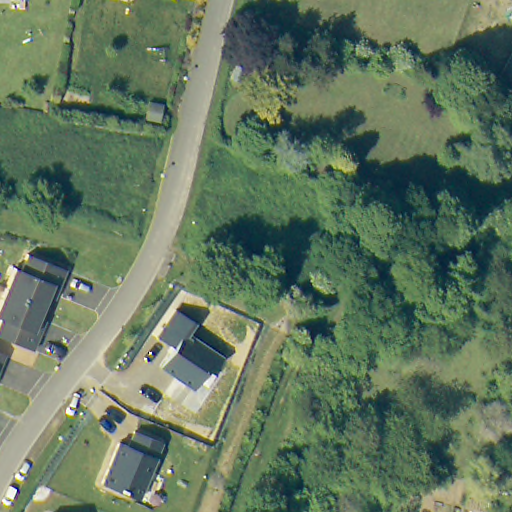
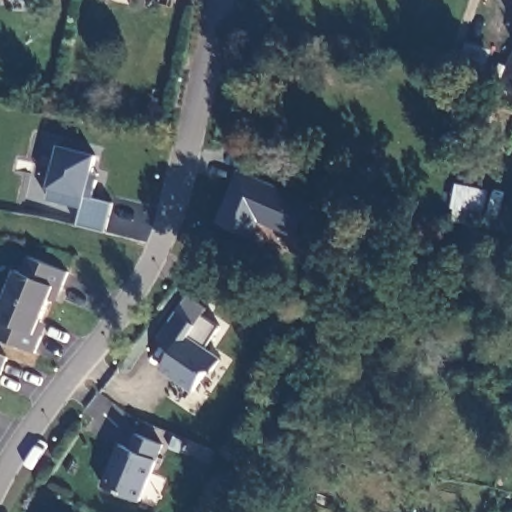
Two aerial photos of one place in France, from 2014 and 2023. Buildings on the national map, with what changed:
unchanged [(501,82),(503,77),(512,60),(512,88),(501,82)]
unchanged [(231,87),(237,72),(247,76),(242,91),(231,87)]
new [(93,172),(98,174),(92,198),(112,202),(104,231),(76,224),(80,208),(45,199),(48,189),(58,146),(97,155),(93,172)]
new [(235,176),(307,214),(289,248),(252,228),(243,244),(210,226),(235,176)]
unchanged [(67,296),(61,293),(41,339),(48,342),(40,359),(2,343),(9,327),(2,324),(23,276),(29,278),(36,262),(75,279),(67,296)]
unchanged [(177,310),(197,324),(189,335),(225,359),(216,372),(211,369),(195,392),(161,368),(174,349),(157,337),(177,310)]
unchanged [(0,379),(0,358),(12,364),(5,381),(0,379)]
unchanged [(121,442),(130,446),(138,432),(166,443),(158,459),(141,501),(101,484),(121,442)]

